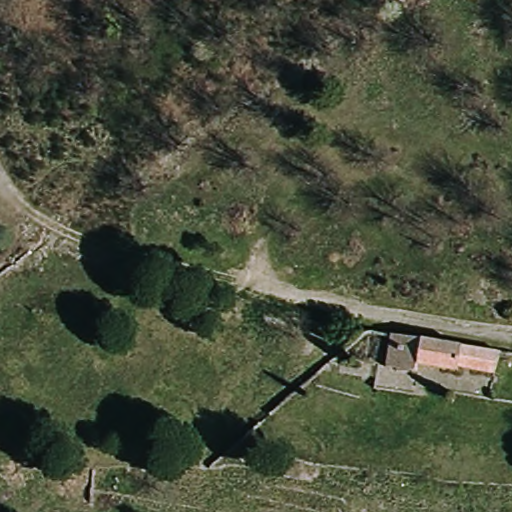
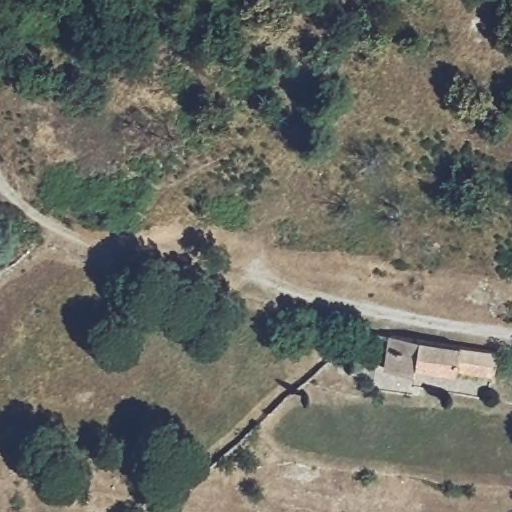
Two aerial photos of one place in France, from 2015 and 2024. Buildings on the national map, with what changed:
unchanged [(386,365),(389,336),(497,353),(492,375),(386,365)]

